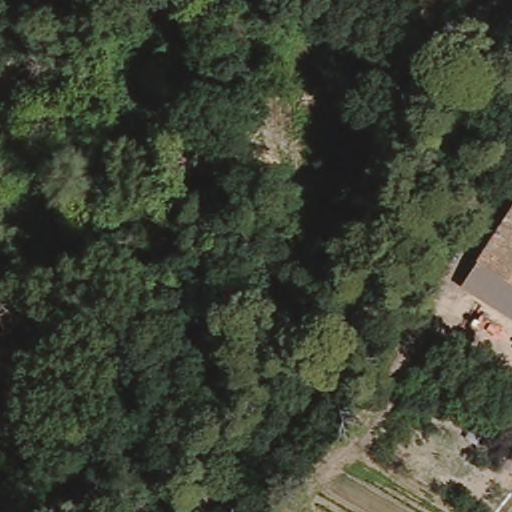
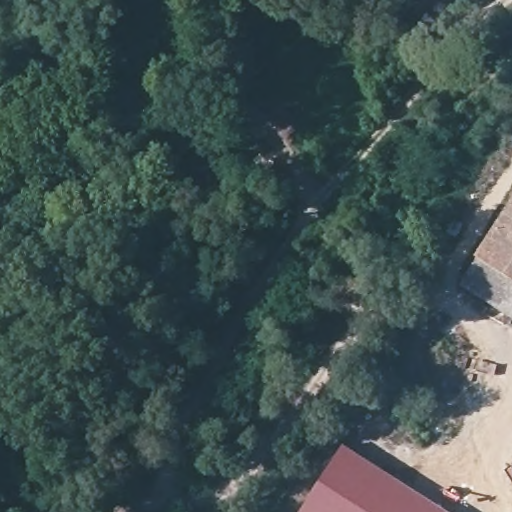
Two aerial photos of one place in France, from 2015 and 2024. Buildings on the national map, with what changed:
unchanged [(512,208),(512,283),(478,261),(512,208)]
unchanged [(478,261),(512,283),(512,312),(465,282),(478,261)]
new [(449,512),(298,512),(342,444),(449,512)]

